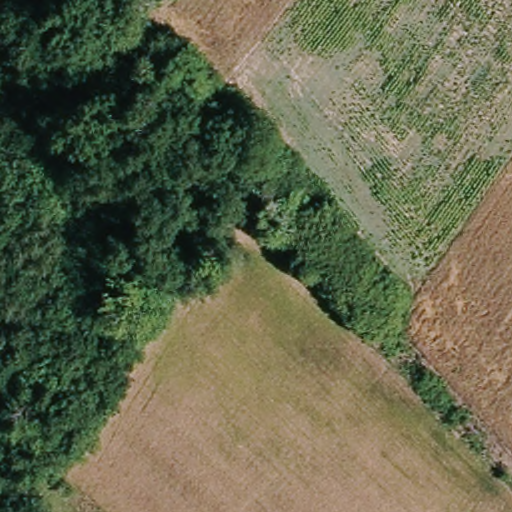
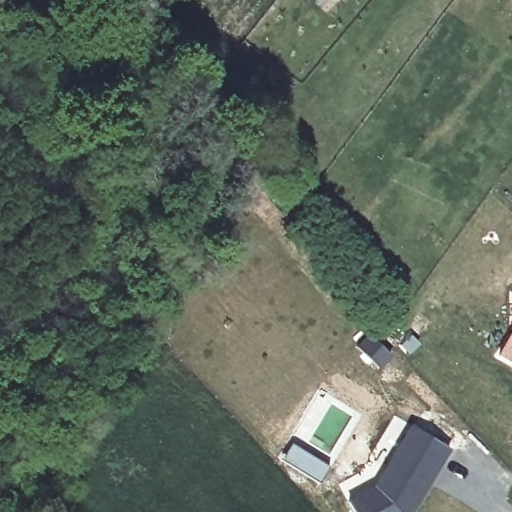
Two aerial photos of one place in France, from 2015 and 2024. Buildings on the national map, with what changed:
new [(512,333),(512,363),(499,355),(512,333)]
new [(413,425),(449,447),(410,512),(355,512),(349,500),(375,486),(413,425)]

